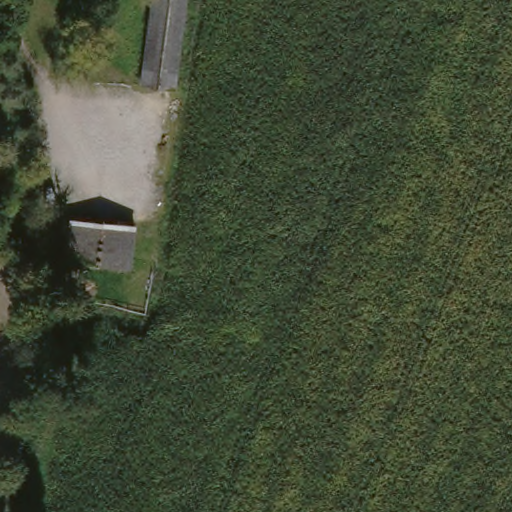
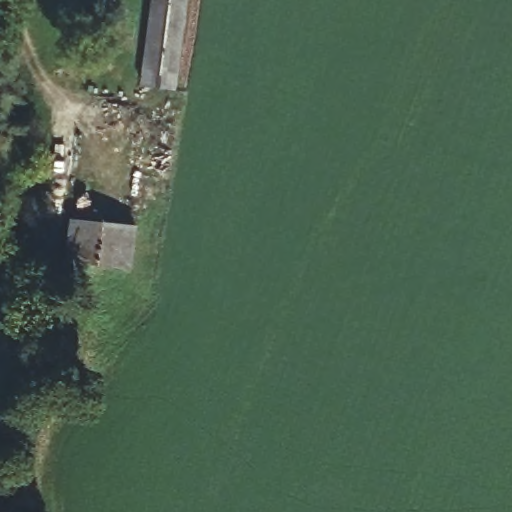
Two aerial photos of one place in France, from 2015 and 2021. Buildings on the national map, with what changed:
unchanged [(145,85),(155,0),(186,0),(177,89),(145,85)]
unchanged [(136,230),(133,271),(62,264),(66,224),(136,230)]

